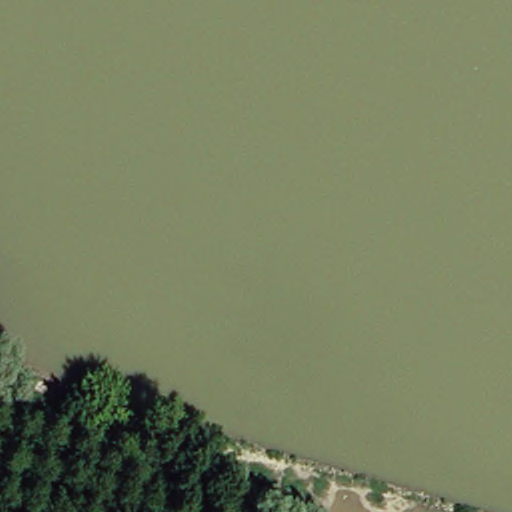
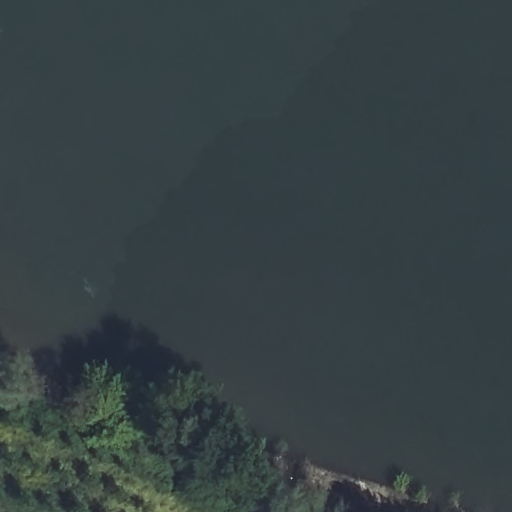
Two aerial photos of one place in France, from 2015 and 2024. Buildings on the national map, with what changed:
[]

